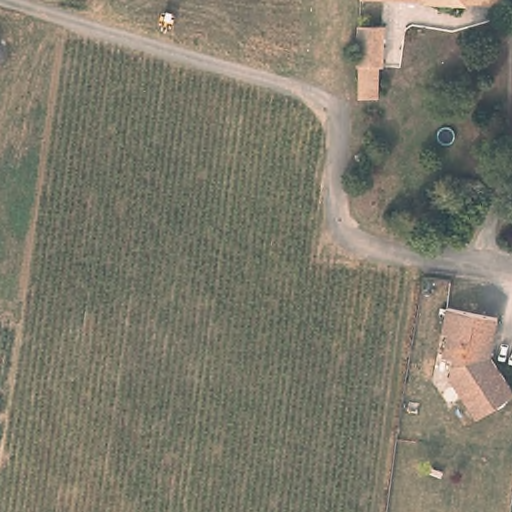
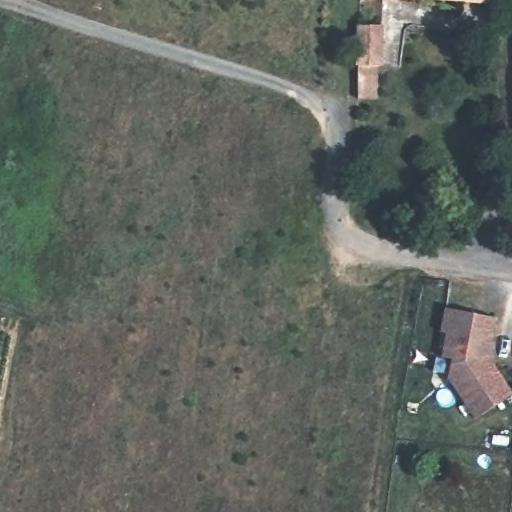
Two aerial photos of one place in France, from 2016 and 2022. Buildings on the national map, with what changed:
unchanged [(400,0),(462,0),(462,2),(400,0)]
unchanged [(496,4),(462,2),(462,0),(497,0),(496,4)]
unchanged [(385,24),(386,66),(377,68),(378,100),(355,102),(353,24),(385,24)]
unchanged [(490,358),(512,393),(512,399),(476,421),(450,380),(453,360),(443,358),(448,335),(442,333),(446,309),(497,319),(490,358)]

